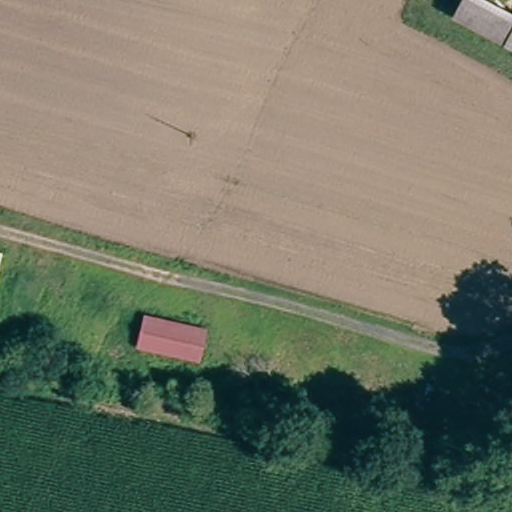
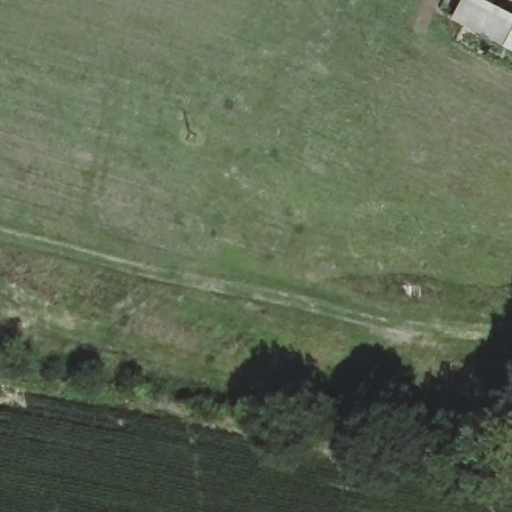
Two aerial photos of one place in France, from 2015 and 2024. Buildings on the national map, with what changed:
unchanged [(467,0),(490,0),(499,5),(512,12),(512,46),(458,17),(467,0)]
unchanged [(502,0),(499,5),(490,0),(502,0)]
demolished [(208,332),(200,360),(138,342),(146,314),(208,332)]

